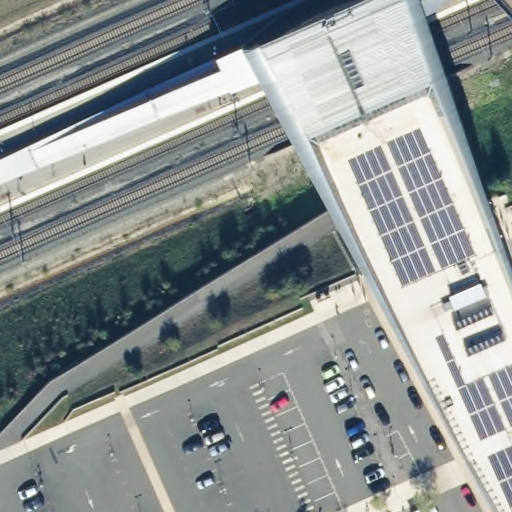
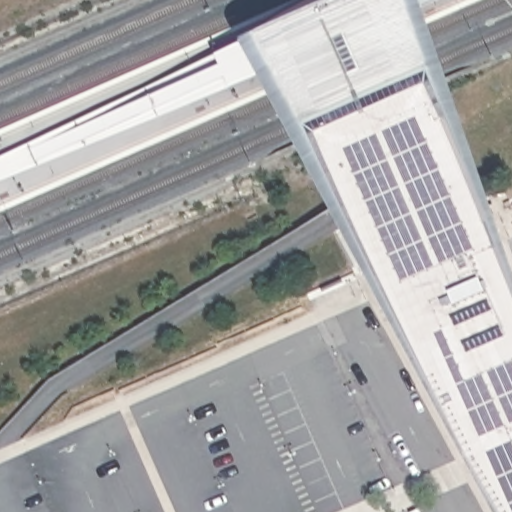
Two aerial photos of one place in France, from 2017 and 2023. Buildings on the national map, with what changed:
unchanged [(226,86),(212,53),(239,42),(332,0),(433,0),(419,7),(512,281),(512,512),(495,512),(255,78),(226,86)]

